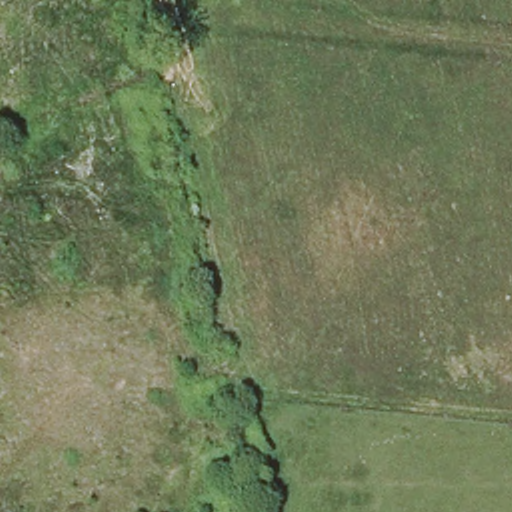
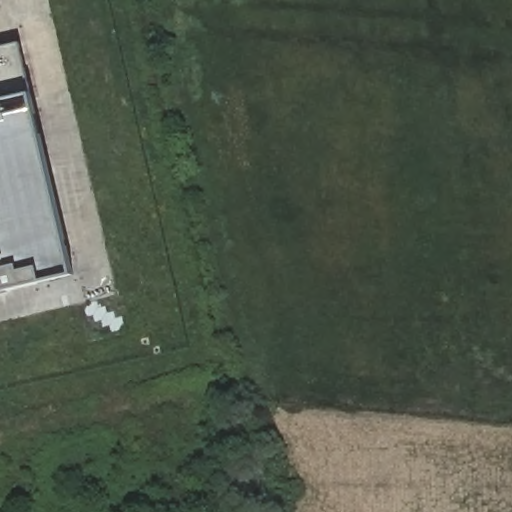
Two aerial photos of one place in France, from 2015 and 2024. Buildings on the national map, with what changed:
new [(20,43),(74,276),(0,292),(0,48),(20,43)]

